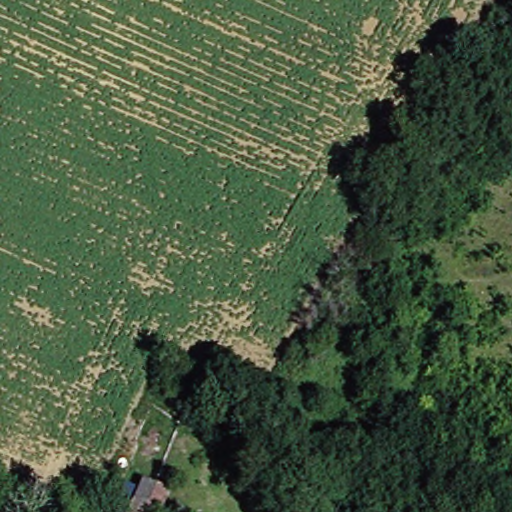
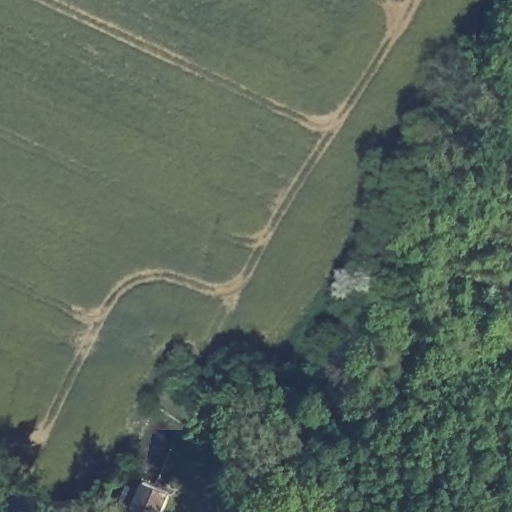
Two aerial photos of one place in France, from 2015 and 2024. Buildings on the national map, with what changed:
unchanged [(161,512),(131,512),(145,481),(170,493),(161,512)]

